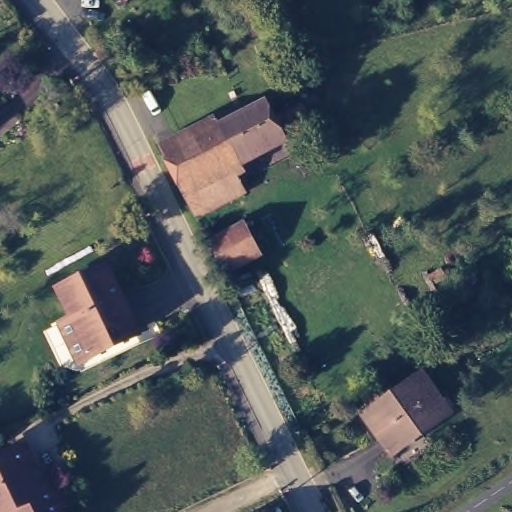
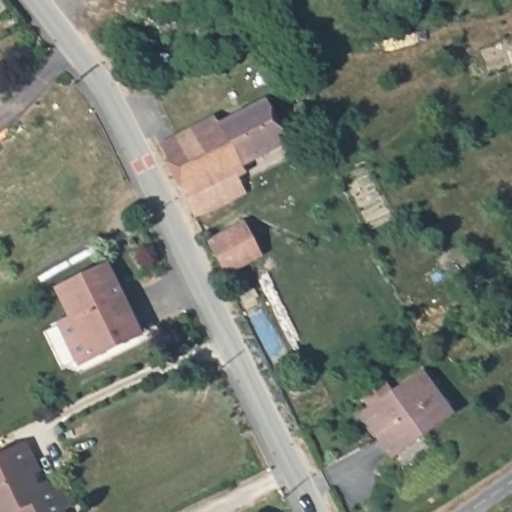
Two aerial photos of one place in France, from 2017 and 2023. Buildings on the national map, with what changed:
unchanged [(275,115),(302,101),(313,121),(285,135),(289,144),(242,169),(246,177),(238,182),(242,193),(195,217),(164,150),(243,107),(265,96),(275,115)]
unchanged [(210,241),(246,224),(261,256),(225,273),(210,241)]
unchanged [(80,351),(64,317),(78,311),(70,295),(65,282),(110,264),(115,276),(140,331),(80,351)]
unchanged [(453,419),(395,457),(370,421),(379,415),(370,402),(391,388),(400,401),(429,382),(453,419)]
unchanged [(18,443),(25,440),(43,480),(54,475),(66,507),(61,510),(62,512),(9,512),(9,511),(8,512),(0,512),(0,452),(18,443)]

